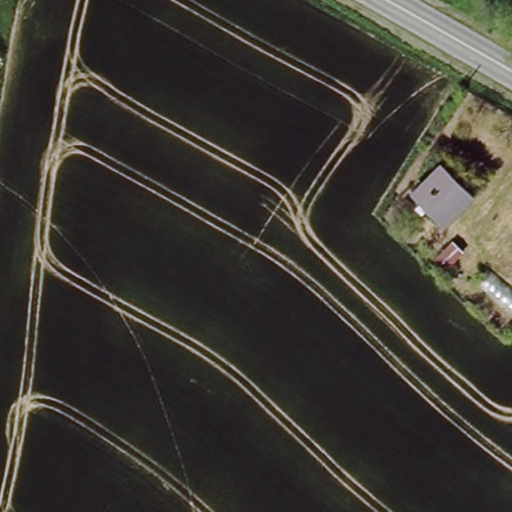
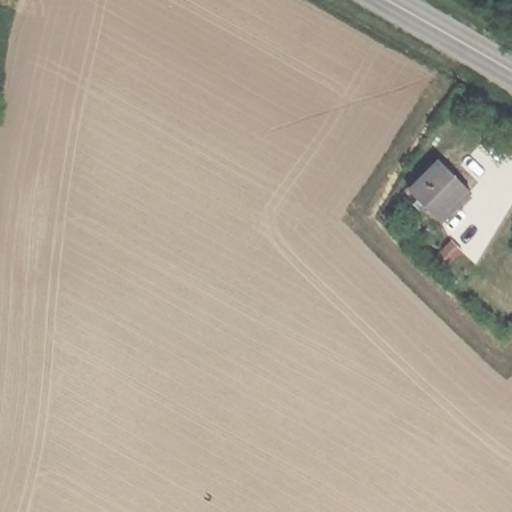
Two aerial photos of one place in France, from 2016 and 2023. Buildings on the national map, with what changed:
unchanged [(442,161),(470,189),(444,217),(415,190),(442,161)]
unchanged [(460,255),(442,273),(432,263),(449,245),(460,255)]

